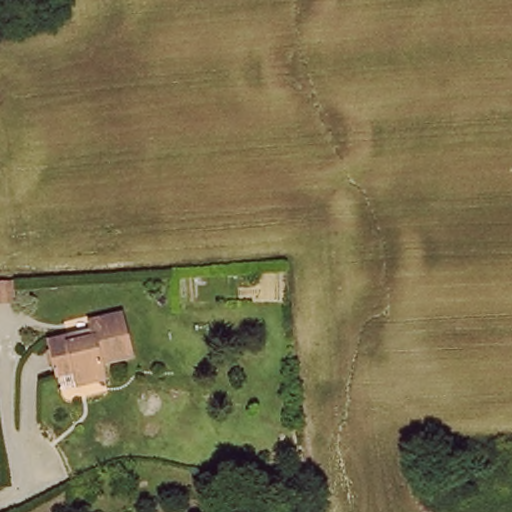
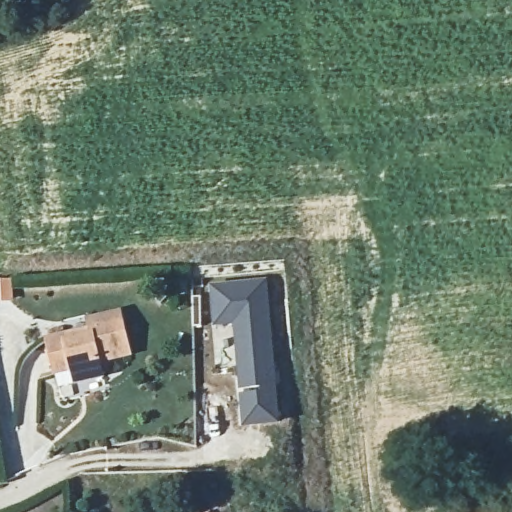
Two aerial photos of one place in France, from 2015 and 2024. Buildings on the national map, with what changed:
new [(238,322),(218,324),(214,286),(267,281),(281,422),(248,425),(245,395),(263,394),(263,387),(244,388),(238,322)]
unchanged [(135,314),(139,357),(107,363),(109,381),(81,384),(80,372),(59,374),(55,337),(73,334),(100,331),(99,320),(135,314)]

